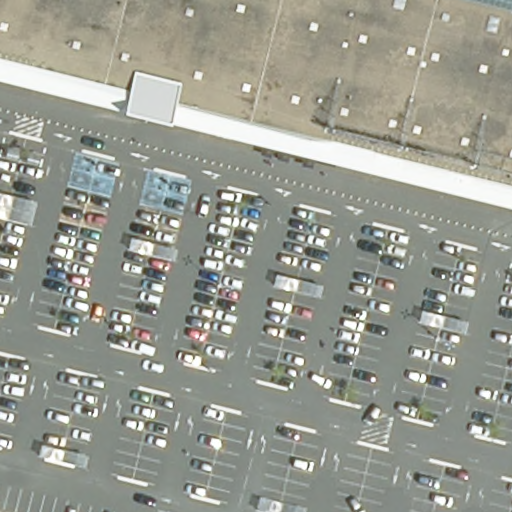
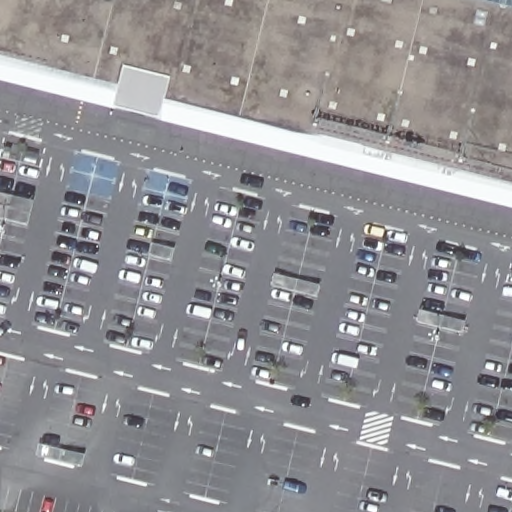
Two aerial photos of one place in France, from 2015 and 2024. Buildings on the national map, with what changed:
unchanged [(338,151),(256,131),(175,110),(168,115),(165,108),(115,95),(109,99),(105,93),(18,71),(21,56),(0,51),(0,0),(512,0),(512,194),(338,151)]

